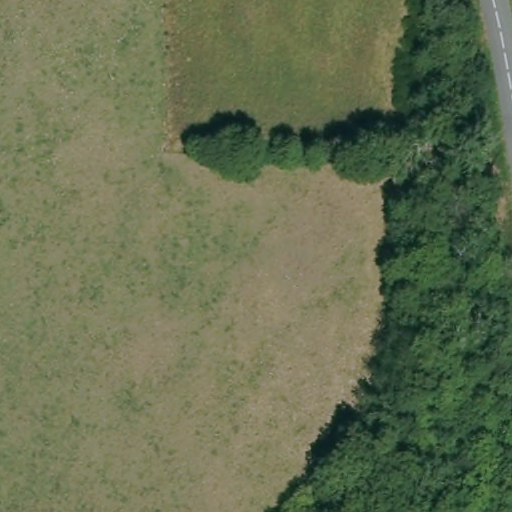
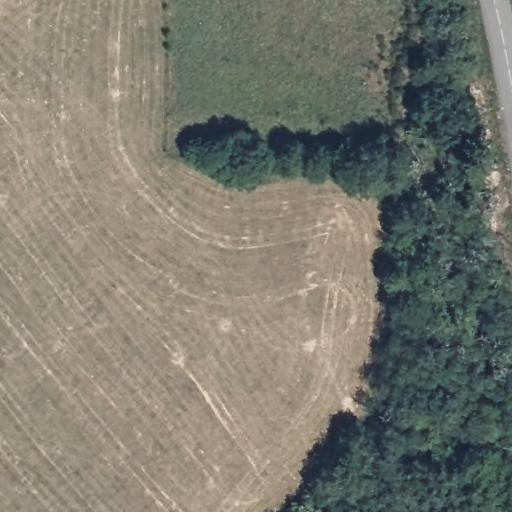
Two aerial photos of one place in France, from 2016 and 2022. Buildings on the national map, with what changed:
[]

